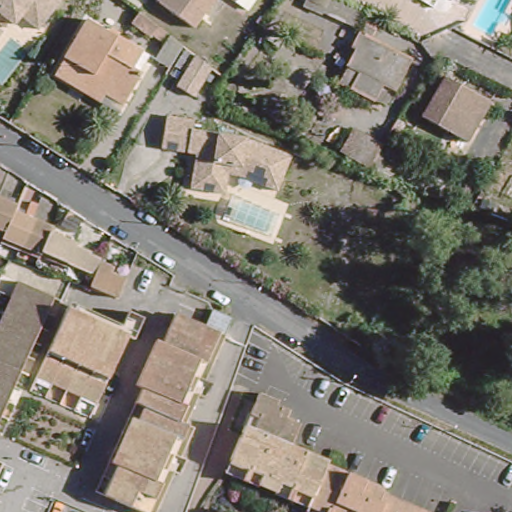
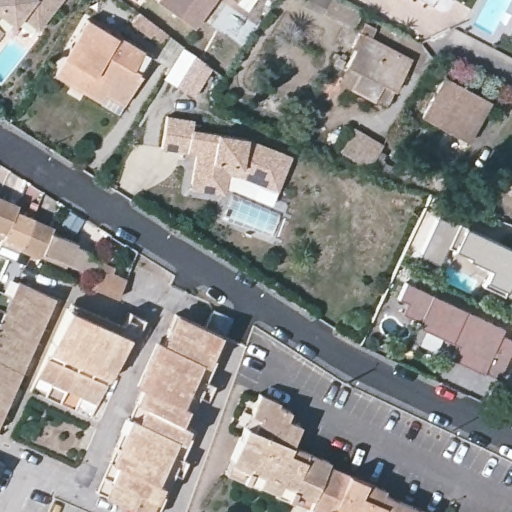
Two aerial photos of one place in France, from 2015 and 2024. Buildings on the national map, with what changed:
unchanged [(57,0),(40,24),(22,10),(15,19),(1,8),(0,9),(0,0),(57,0)]
unchanged [(162,0),(219,0),(199,26),(162,0)]
unchanged [(240,0),(240,1),(239,0),(240,0)]
unchanged [(321,15),(302,6),(305,0),(323,9),(322,11),(321,15)]
unchanged [(354,25),(322,11),(329,1),(359,14),(354,25)]
unchanged [(79,83),(60,71),(89,17),(146,49),(153,53),(145,69),(126,101),(123,106),(105,97),(79,83)]
unchanged [(5,26),(0,32),(0,23),(5,26)]
unchanged [(351,89),(358,73),(346,66),(354,49),(351,47),(358,33),(360,34),(365,26),(376,31),(372,40),(399,54),(410,59),(403,71),(395,90),(393,90),(387,104),(375,99),(351,89)]
unchanged [(215,66),(196,96),(176,83),(197,55),(215,66)]
unchanged [(442,121),(430,114),(445,86),(485,109),(475,126),(469,136),(442,121)]
unchanged [(187,174),(192,149),(184,147),(158,141),(165,110),(191,116),(189,126),(242,137),(287,156),(272,190),(257,184),(233,174),(222,172),(220,181),(220,186),(186,179),(187,174)]
unchanged [(397,134),(391,130),(396,121),(403,125),(397,134)]
unchanged [(366,166),(335,151),(351,126),(380,143),(378,147),(384,151),(382,157),(395,165),(390,176),(366,166)]
demolished [(493,187),(512,159),(512,193),(510,198),(493,187)]
unchanged [(92,277),(98,264),(73,253),(8,224),(6,228),(0,226),(0,189),(20,197),(17,203),(53,219),(53,224),(80,236),(78,242),(92,248),(90,254),(101,258),(102,254),(117,259),(115,266),(129,272),(122,288),(92,277)]
new [(512,249),(512,296),(506,293),(484,282),(490,269),(447,249),(440,266),(418,256),(437,215),(464,227),(512,249)]
new [(458,345),(417,325),(419,321),(401,313),(406,302),(401,300),(409,283),(502,328),(500,335),(512,340),(512,348),(498,379),(451,361),(458,345)]
unchanged [(33,348),(27,361),(20,377),(13,392),(6,407),(0,422),(0,326),(5,317),(11,302),(17,287),(52,303),(46,318),(40,333),(33,348)]
unchanged [(102,394),(86,387),(72,380),(57,374),(41,367),(72,300),(131,326),(102,394)]
unchanged [(115,442),(122,428),(129,412),(135,398),(141,383),(135,380),(155,336),(162,338),(175,309),(204,322),(212,306),(232,313),(212,361),(205,375),(213,379),(206,395),(196,391),(185,420),(193,424),(186,438),(180,453),(186,455),(180,470),(174,468),(166,464),(160,478),(167,482),(155,512),(105,490),(96,487),(110,457),(115,442)]
new [(512,377),(512,393),(506,390),(512,377)]
unchanged [(307,508),(307,504),(290,497),(242,476),(226,468),(231,457),(245,422),(250,411),(259,389),(277,397),(276,401),(289,406),(286,414),(298,420),(290,440),(327,457),(326,459),(384,484),(383,488),(427,508),(426,512),(318,512),(307,508)]

